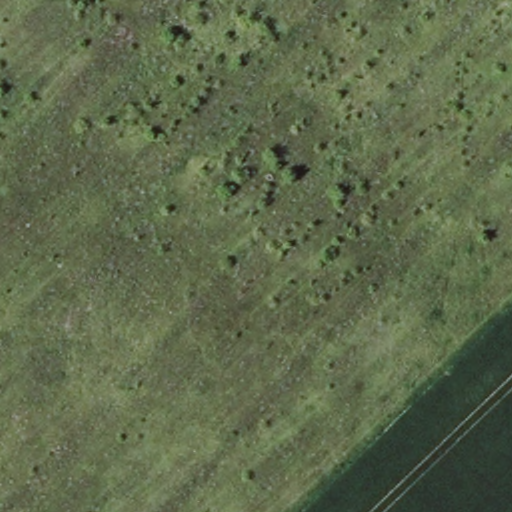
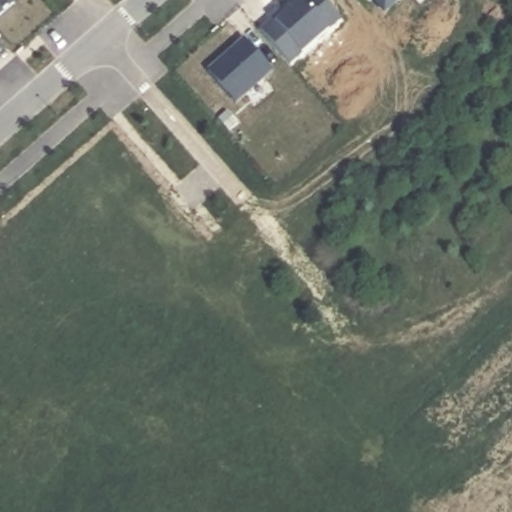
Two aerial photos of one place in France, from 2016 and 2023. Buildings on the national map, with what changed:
new [(0,16),(0,0),(11,0),(15,4),(0,16)]
new [(290,65),(260,31),(273,19),(275,21),(300,0),(325,0),(342,19),(290,65)]
new [(245,39),(272,71),(236,102),(207,71),(245,39)]

